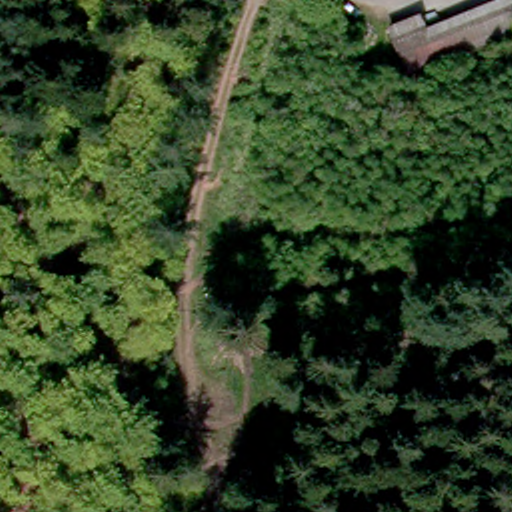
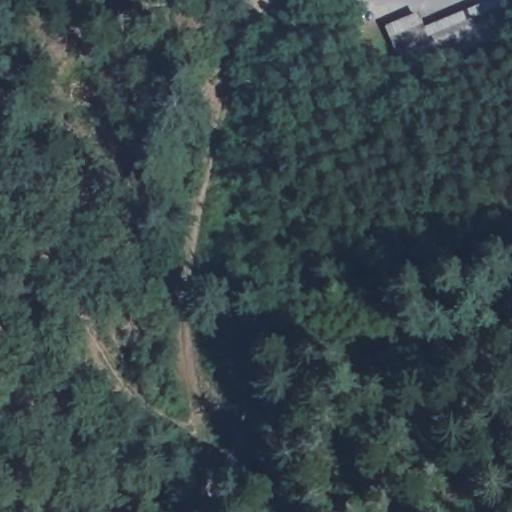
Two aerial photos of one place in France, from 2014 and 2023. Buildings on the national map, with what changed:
unchanged [(419,16),(425,31),(502,0),(512,0),(512,32),(507,34),(505,35),(463,51),(458,54),(412,73),(407,74),(390,29),(419,16)]

